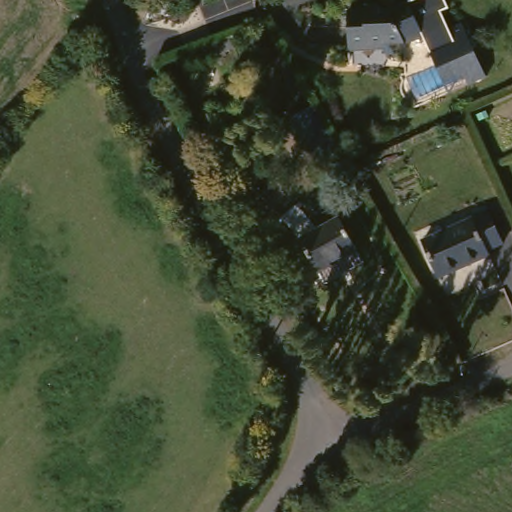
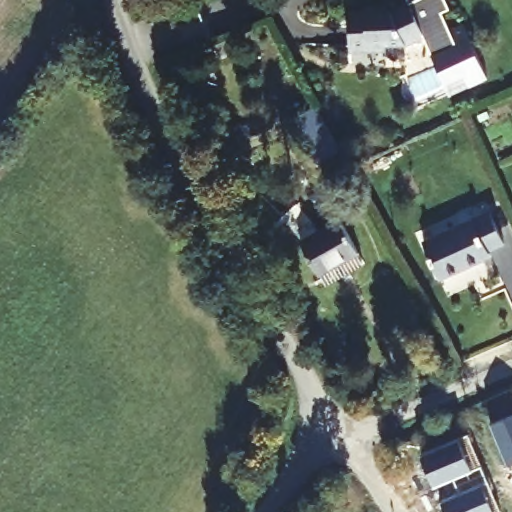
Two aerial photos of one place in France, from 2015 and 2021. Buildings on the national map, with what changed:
unchanged [(364,10),(379,9),(379,14),(390,14),(402,11),(410,6),(409,5),(420,0),(440,0),(446,13),(443,14),(451,32),(463,26),(470,41),(464,44),(443,54),(433,58),(424,39),(407,46),(408,56),(388,58),(387,48),(350,51),(347,16),(364,14),(364,10)]
unchanged [(464,44),(470,41),(487,78),(460,90),(443,54),(464,44)]
unchanged [(316,111),(328,105),(353,150),(340,157),(331,161),(316,134),(306,116),(316,111)]
unchanged [(372,274),(334,296),(304,244),(283,227),(299,213),(321,234),(341,223),(372,274)]
unchanged [(504,248),(489,254),(491,259),(442,280),(425,243),(489,214),(504,248)]
new [(512,472),(511,473),(491,427),(512,416),(512,472)]
new [(468,437),(499,512),(446,512),(443,503),(461,495),(455,480),(436,489),(423,456),(468,437)]

